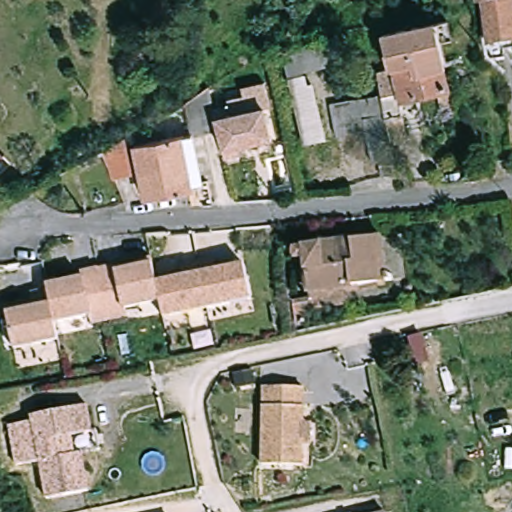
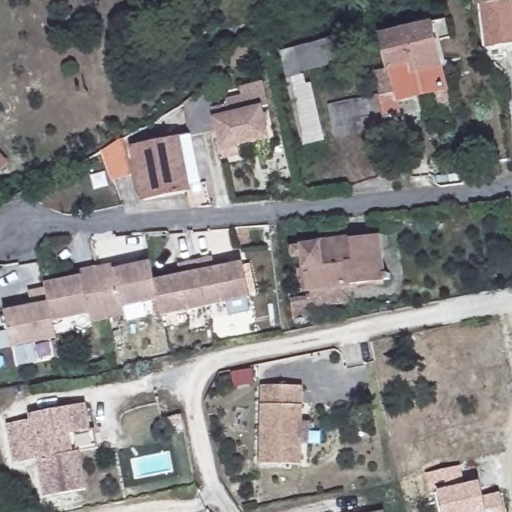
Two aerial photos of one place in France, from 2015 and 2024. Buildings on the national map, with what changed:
unchanged [(505,57),(492,59),(485,3),(477,4),(476,0),(512,0),(512,43),(503,44),(505,57)]
unchanged [(416,72),(414,65),(389,70),(388,68),(384,50),(380,31),(432,20),(442,18),(446,36),(436,38),(442,67),(416,72)]
unchanged [(341,60),(301,67),(302,73),(287,75),(281,45),(337,36),(341,60)]
unchanged [(381,95),(380,91),(377,70),(388,68),(389,70),(414,65),(416,72),(442,67),(447,89),(400,98),(403,113),(384,116),(383,111),(381,95)]
unchanged [(302,73),(304,83),(310,82),(319,137),(298,141),(287,75),(302,73)]
unchanged [(272,139),(224,152),(219,133),(193,140),(192,137),(181,107),(210,100),(213,112),(230,107),(233,116),(264,107),(272,139)]
unchanged [(346,103),(350,119),(379,115),(388,159),(389,159),(391,175),(380,176),(379,160),(371,161),(365,131),(335,136),(330,106),(346,103)]
unchanged [(189,185),(190,189),(146,199),(128,133),(141,124),(166,109),(171,122),(147,136),(150,142),(177,135),(178,140),(192,137),(193,140),(203,181),(189,185)]
unchanged [(105,146),(107,145),(123,136),(133,172),(114,178),(105,146)]
unchanged [(1,149),(8,156),(14,162),(9,168),(3,173),(0,171),(0,149),(1,149)]
unchanged [(310,302),(308,282),(302,239),(372,231),(381,230),(386,273),(377,274),(345,278),(347,298),(310,302)]
unchanged [(214,255),(216,266),(243,260),(251,297),(208,307),(197,258),(214,255)]
unchanged [(208,307),(162,316),(154,279),(182,273),(179,262),(197,258),(208,307)]
unchanged [(116,262),(117,268),(150,262),(158,301),(124,307),(126,317),(107,320),(97,266),(116,262)]
unchanged [(107,320),(89,323),(87,314),(53,320),(46,281),(80,275),(79,269),(97,266),(107,320)]
unchanged [(43,287),(49,316),(54,340),(10,349),(2,311),(1,304),(29,298),(27,290),(43,287)]
unchanged [(305,388),(304,465),(263,465),(264,388),(305,388)]
unchanged [(33,421),(32,416),(88,405),(92,433),(67,438),(70,456),(82,453),(90,490),(48,498),(40,460),(17,465),(9,426),(33,421)]
new [(484,495),(499,490),(504,512),(444,512),(439,491),(430,493),(426,473),(462,466),(464,485),(480,481),(484,495)]

